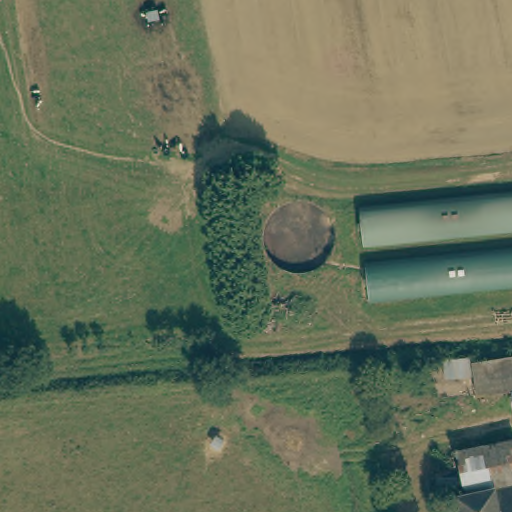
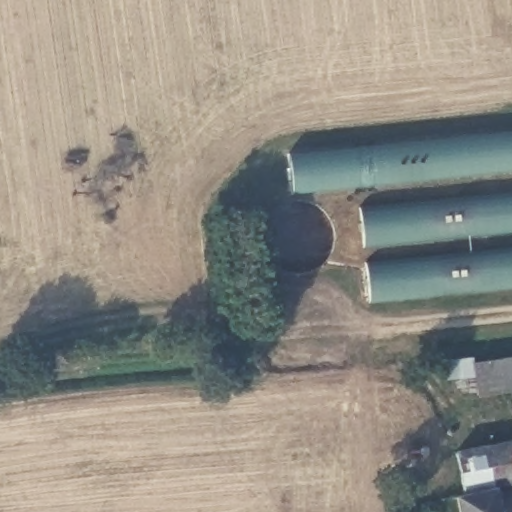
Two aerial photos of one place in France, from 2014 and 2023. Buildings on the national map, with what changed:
new [(512,133),(512,170),(292,193),(288,159),(512,133)]
unchanged [(512,230),(362,245),(358,206),(512,191),(512,230)]
unchanged [(512,288),(368,302),(364,263),(512,248),(512,288)]
unchanged [(473,363),(512,358),(512,378),(477,382),(473,363)]
unchanged [(512,446),(512,487),(467,497),(457,458),(512,446)]
unchanged [(460,504),(459,499),(467,497),(512,487),(512,512),(461,512),(460,504)]

